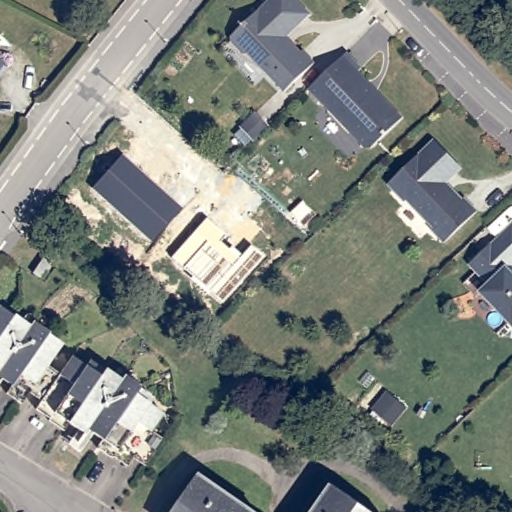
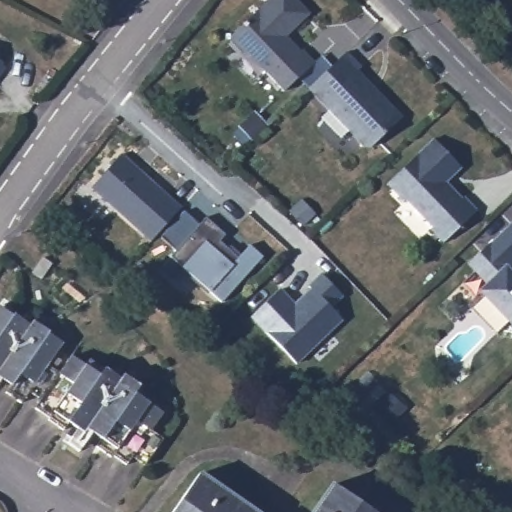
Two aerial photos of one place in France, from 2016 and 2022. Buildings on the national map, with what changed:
unchanged [(270,0),(299,0),(312,13),(288,36),(303,51),(305,49),(317,62),(287,90),(250,52),(245,52),(234,40),(234,35),(270,0)]
unchanged [(349,51),(364,66),(360,70),(405,116),(374,146),(367,146),(311,88),(349,51)]
unchanged [(0,72),(0,63),(4,66),(0,72)]
unchanged [(463,166),(447,181),(454,187),(464,197),(465,196),(478,209),(446,241),(433,227),(435,225),(408,198),(406,200),(389,182),(435,138),(463,166)]
unchanged [(89,189),(120,154),(183,207),(150,242),(89,189)]
unchanged [(226,232),(221,241),(239,256),(249,243),(264,256),(224,302),(172,257),(207,218),(226,232)]
unchanged [(484,289),(486,287),(492,281),(473,261),(492,242),(494,244),(512,226),(512,319),(484,289)]
unchanged [(33,270),(40,260),(43,256),(51,263),(48,267),(41,277),(40,278),(31,272),(33,270)]
new [(280,289),(295,304),(311,290),(309,287),(322,275),(343,295),(332,309),(342,320),(298,364),(250,318),(280,289)]
unchanged [(14,313),(30,324),(31,321),(49,331),(44,339),(58,348),(48,363),(59,373),(71,356),(97,374),(104,366),(120,378),(123,375),(138,385),(133,392),(162,412),(150,429),(163,437),(144,463),(132,455),(126,465),(96,445),(110,427),(106,424),(101,429),(93,423),(86,430),(89,434),(81,445),(74,440),(85,424),(75,417),(80,411),(75,408),(61,427),(36,407),(40,400),(30,392),(20,403),(6,393),(17,379),(13,373),(11,377),(2,370),(0,373),(0,315),(9,320),(14,313)]
unchanged [(256,512),(176,512),(203,473),(256,512)]
unchanged [(366,512),(317,512),(335,488),(366,512)]

